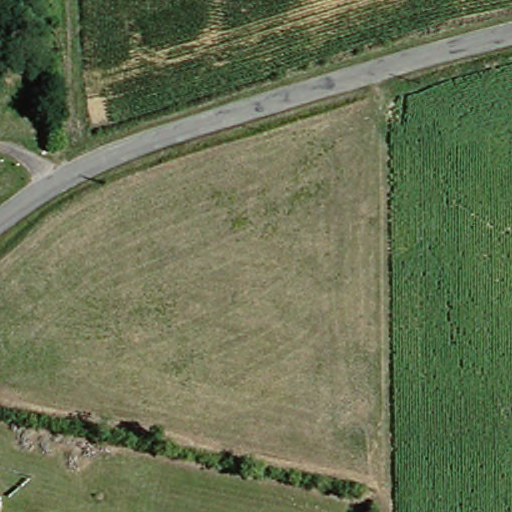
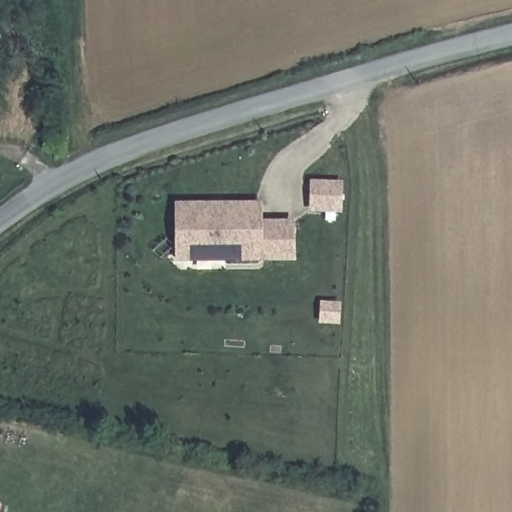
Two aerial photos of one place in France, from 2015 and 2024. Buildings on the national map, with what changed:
new [(313,181),(340,183),(339,210),(312,208),(313,181)]
new [(292,257),(256,257),(181,258),(181,240),(181,207),(181,201),(256,201),(256,207),(256,220),(292,220),(292,257)]
new [(0,507),(0,501),(1,501),(0,507)]
demolished [(0,512),(0,505),(1,505),(0,512)]

